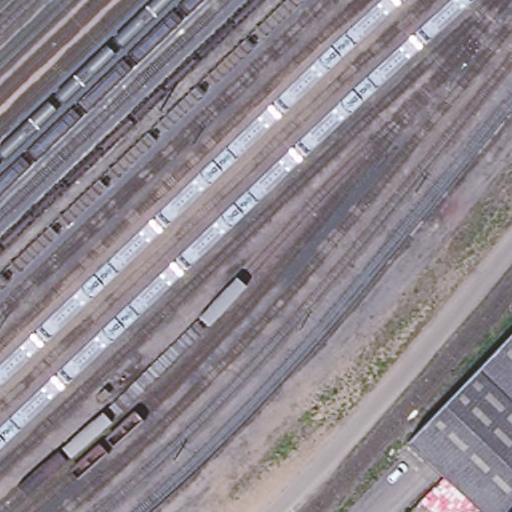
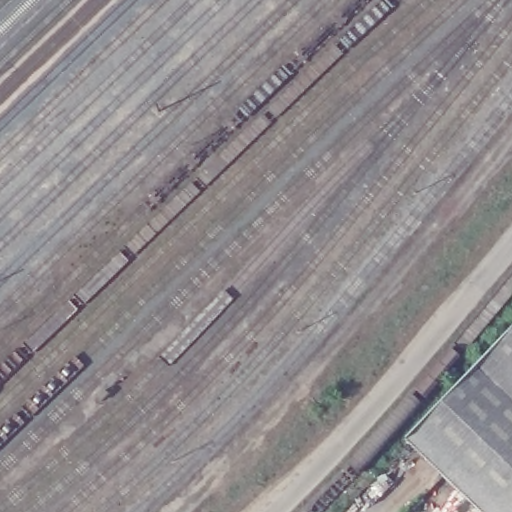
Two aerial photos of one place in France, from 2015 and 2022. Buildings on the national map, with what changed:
unchanged [(409,446),(512,339),(512,410),(445,480),(409,446)]
unchanged [(477,512),(445,480),(512,410),(512,512),(477,512)]

